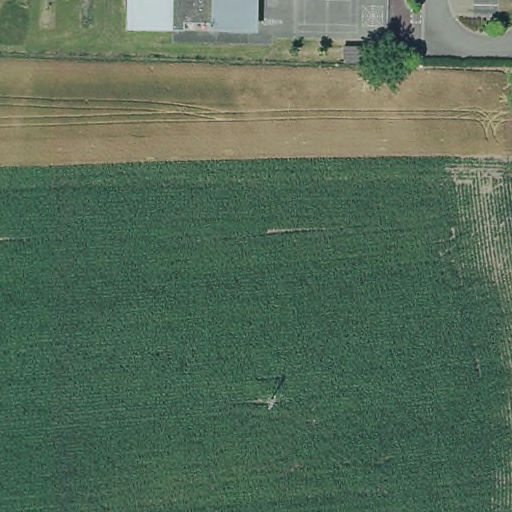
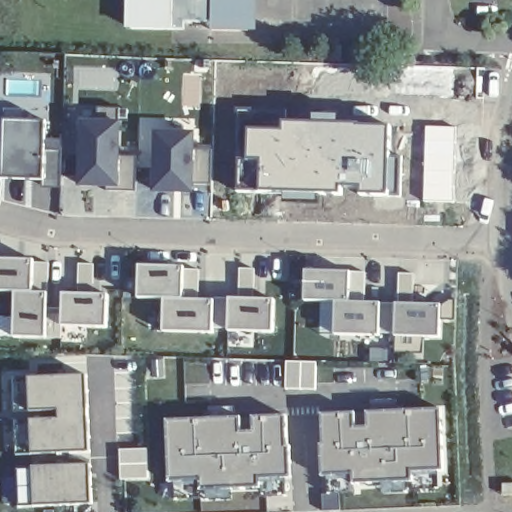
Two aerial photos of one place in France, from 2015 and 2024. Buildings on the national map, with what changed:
unchanged [(243,25),(206,25),(207,17),(179,16),(179,24),(126,23),(127,0),(243,0),(243,25)]
new [(183,74),(202,75),(201,106),(189,105),(189,98),(182,97),(183,74)]
new [(43,186),(42,181),(3,180),(4,111),(25,112),(25,121),(47,121),(45,150),(64,151),(64,187),(43,186)]
new [(135,192),(115,192),(115,187),(74,187),(73,120),(115,120),(115,156),(134,156),(135,192)]
new [(392,126),(392,198),(360,197),(360,187),(342,186),(342,196),(263,194),(264,162),(250,162),(250,134),(285,134),(285,123),(392,126)]
new [(457,127),(455,202),(422,203),(424,127),(457,127)]
new [(209,185),(190,185),(190,195),(148,194),(149,130),(190,130),(190,150),(209,150),(209,185)]
new [(77,263),(92,263),(92,280),(92,293),(103,293),(102,326),(60,325),(61,340),(44,340),(9,338),(10,292),(0,292),(0,258),(32,259),(32,262),(47,262),(47,271),(45,276),(45,292),(45,310),(60,309),(60,292),(77,293),(77,263)]
new [(183,269),(197,270),(197,300),(210,301),(210,329),(210,334),(157,332),(158,299),(133,300),(134,265),(183,265),(183,269)]
new [(237,267),(253,268),(252,298),(269,299),(269,332),(224,331),(224,298),(237,298),(237,267)]
new [(377,333),(377,335),(330,333),(330,301),(300,301),(301,270),(347,271),(364,271),(363,301),(377,301),(377,333)]
new [(397,274),(412,273),(410,303),(437,304),(449,299),(452,300),(453,321),(440,320),(441,338),(421,339),(421,354),(393,353),(394,336),(390,336),(391,303),(396,303),(397,274)]
new [(317,363),(315,390),(284,390),(285,361),(317,363)]
new [(80,375),(83,451),(27,452),(26,420),(55,418),(54,409),(25,410),(24,377),(80,375)]
new [(351,411),(352,427),(363,427),(362,411),(435,408),(437,469),(405,470),(405,478),(347,480),(347,472),(317,473),(317,444),(320,445),(319,413),(351,411)]
new [(237,417),(237,430),(248,430),(249,417),(279,416),(280,446),(284,446),(285,476),(252,476),(252,485),(196,487),(196,478),(165,480),(162,420),(237,417)]
new [(84,465),(87,505),(29,505),(27,467),(84,465)]

